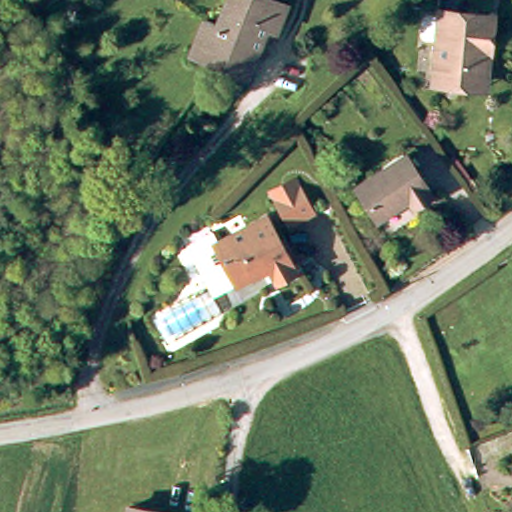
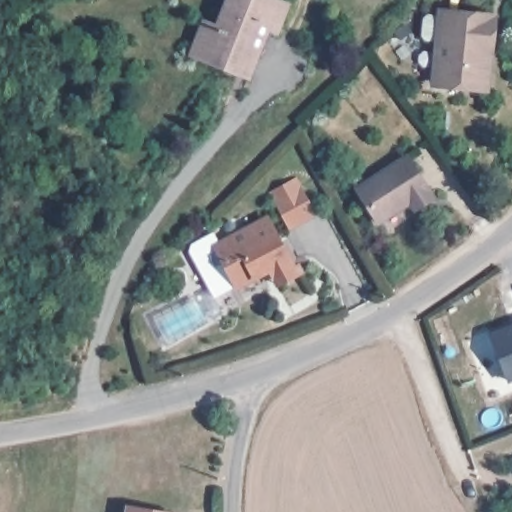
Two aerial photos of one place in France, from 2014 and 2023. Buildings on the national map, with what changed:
unchanged [(238,77),(192,60),(205,27),(219,31),(231,0),(261,0),(286,10),(275,35),(267,32),(257,57),(247,80),(238,77)]
unchanged [(483,88),(442,84),(446,42),(431,41),(429,37),(431,19),(435,15),(449,16),(449,15),(496,19),(493,55),(490,89),(483,88)]
unchanged [(439,201),(420,214),(415,207),(385,226),(377,214),(378,213),(364,192),(413,161),(439,201)]
unchanged [(271,196),(299,182),(303,190),(317,215),(290,231),(276,204),(271,196)]
unchanged [(223,297),(218,286),(200,250),(201,243),(224,230),(231,243),(277,218),(307,274),(287,285),(280,270),(223,297)]
new [(488,332),(512,322),(512,382),(507,384),(488,332)]
unchanged [(141,512),(133,512),(133,510),(141,512)]

